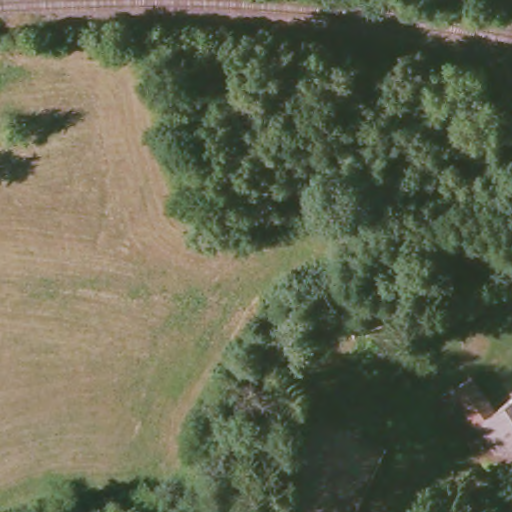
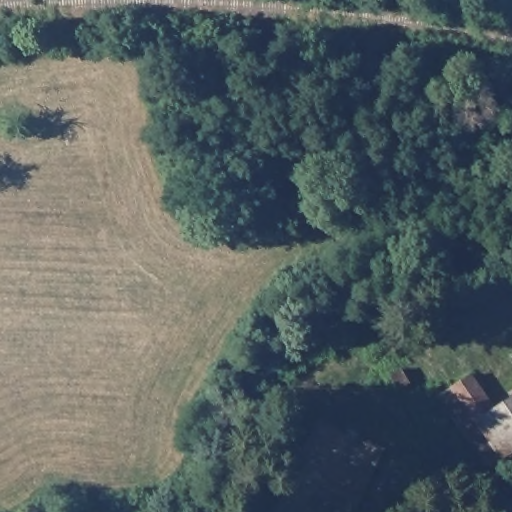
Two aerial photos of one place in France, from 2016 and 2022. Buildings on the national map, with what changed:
unchanged [(431,289),(459,282),(462,297),(434,303),(431,289)]
unchanged [(448,343),(493,409),(512,397),(512,451),(489,466),(440,394),(418,362),(431,354),(448,343)]
unchanged [(391,375),(401,369),(409,382),(399,388),(391,375)]

